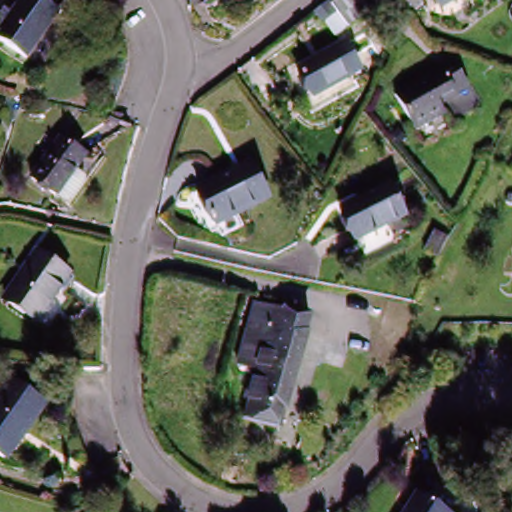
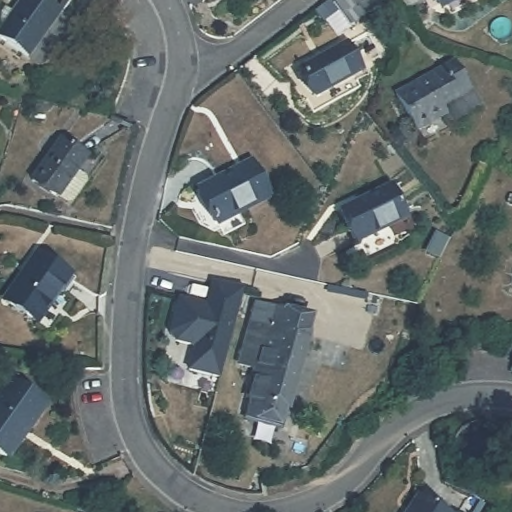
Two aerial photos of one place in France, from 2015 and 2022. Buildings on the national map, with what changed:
unchanged [(23,0),(42,0),(61,15),(28,60),(0,38),(0,30),(23,0)]
unchanged [(348,0),(370,0),(378,10),(367,19),(355,29),(338,8),(348,0)]
unchanged [(460,0),(442,10),(437,0),(460,0)]
unchanged [(311,100),(293,70),(340,42),(357,71),(311,100)]
unchanged [(438,107),(446,119),(422,136),(395,96),(447,60),(466,89),(438,107)]
unchanged [(84,189),(69,207),(64,207),(55,201),(29,181),(60,141),(86,161),(75,176),(83,184),(84,189)]
unchanged [(218,223),(200,185),(250,161),(268,199),(218,223)]
unchanged [(351,240),(339,210),(392,189),(404,219),(351,240)]
unchanged [(2,300),(32,254),(67,277),(37,323),(2,300)]
new [(224,375),(192,368),(198,344),(171,337),(181,297),(214,305),(216,298),(212,298),(217,280),(249,288),(224,375)]
new [(214,305),(211,305),(212,298),(216,298),(214,305)]
unchanged [(281,427),(245,420),(249,402),(245,401),(254,371),(235,367),(251,303),(308,316),(305,332),(286,410),(281,427)]
unchanged [(25,431),(6,460),(0,455),(0,400),(12,382),(47,405),(29,434),(25,431)]
unchanged [(412,500),(433,512),(405,512),(412,500)]

